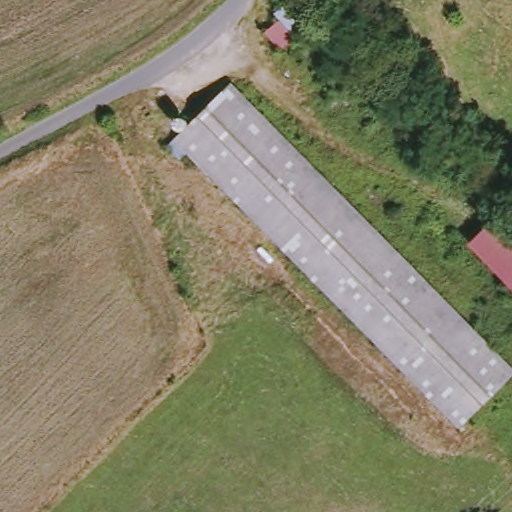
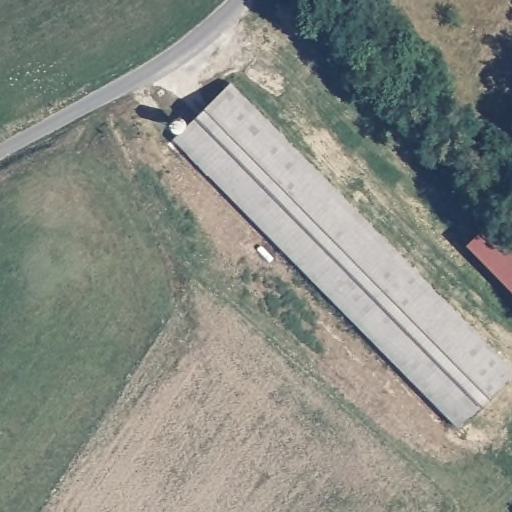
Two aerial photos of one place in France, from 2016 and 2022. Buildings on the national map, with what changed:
unchanged [(435,399),(179,137),(237,79),(512,360),(512,378),(462,426),(435,399)]
unchanged [(472,243),(502,214),(512,224),(512,282),(472,243)]

